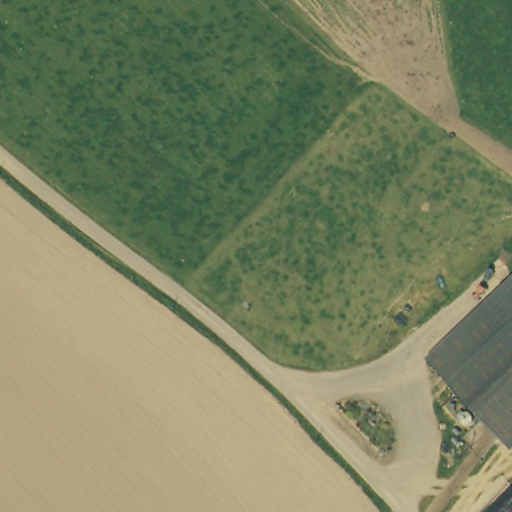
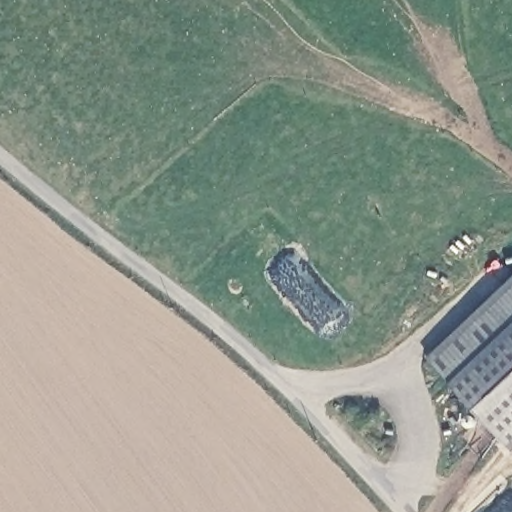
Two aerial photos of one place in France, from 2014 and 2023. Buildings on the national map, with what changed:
unchanged [(432,363),(512,288),(512,432),(505,439),(432,363)]

